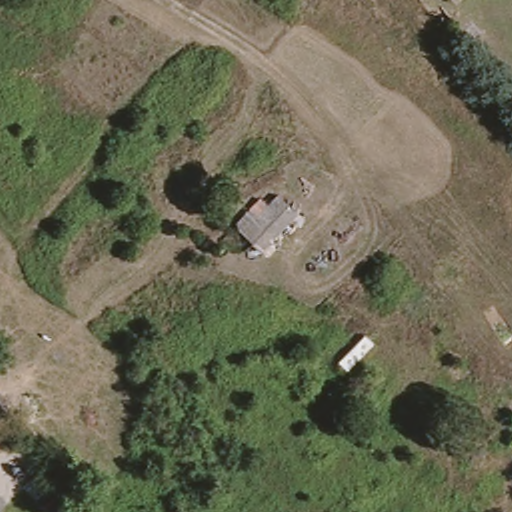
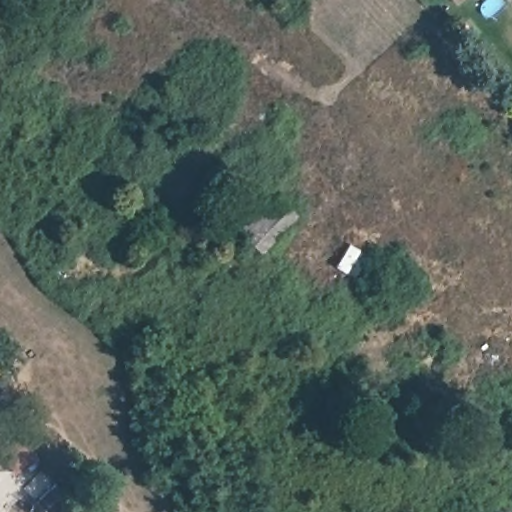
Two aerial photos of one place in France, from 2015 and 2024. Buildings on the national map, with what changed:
unchanged [(447,0),(463,0),(454,8),(447,0)]
unchanged [(257,194),(267,203),(279,194),(300,217),(274,242),(243,210),(257,194)]
unchanged [(363,332),(377,346),(345,375),(332,358),(363,332)]

